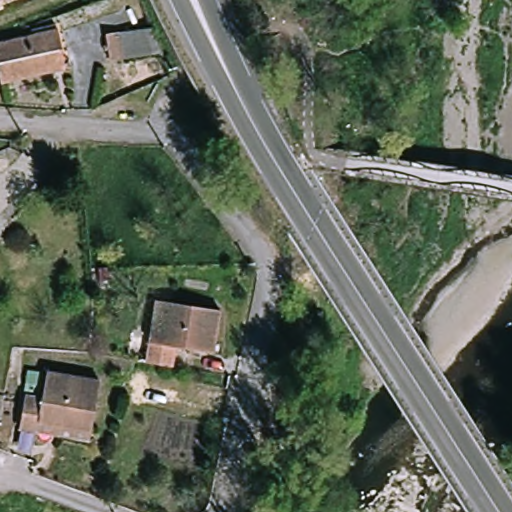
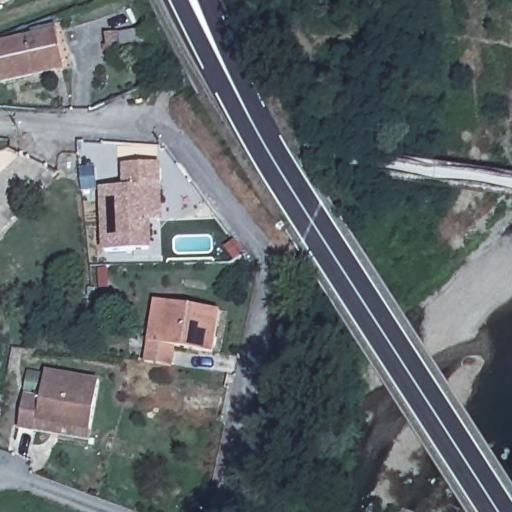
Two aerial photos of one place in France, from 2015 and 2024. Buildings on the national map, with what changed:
unchanged [(0,84),(0,47),(65,25),(77,57),(0,84)]
unchanged [(105,58),(104,30),(145,27),(152,26),(162,52),(155,53),(105,58)]
new [(134,162),(167,162),(167,186),(167,221),(156,221),(157,249),(112,250),(111,185),(134,185),(134,162)]
unchanged [(173,365),(147,360),(160,299),(220,310),(211,352),(177,345),(173,365)]
unchanged [(38,426),(17,420),(25,391),(44,394),(50,375),(103,389),(92,430),(88,442),(38,426)]

